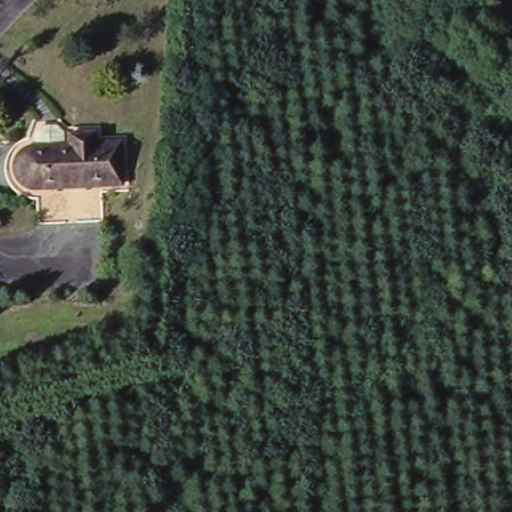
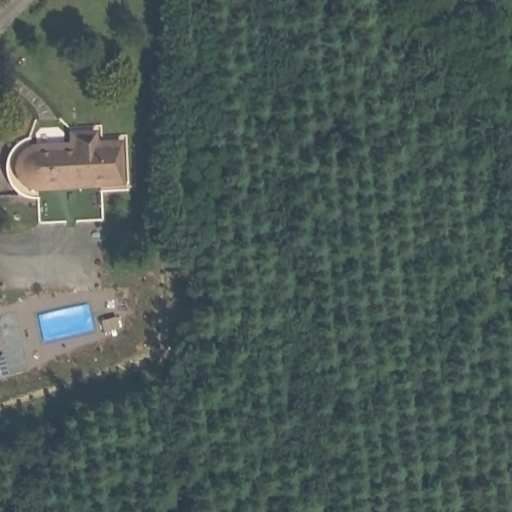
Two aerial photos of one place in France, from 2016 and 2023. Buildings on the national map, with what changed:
unchanged [(117,196),(94,193),(92,204),(22,195),(15,183),(14,170),(17,157),(25,146),(74,151),(74,143),(103,147),(101,156),(120,157),(117,196)]

